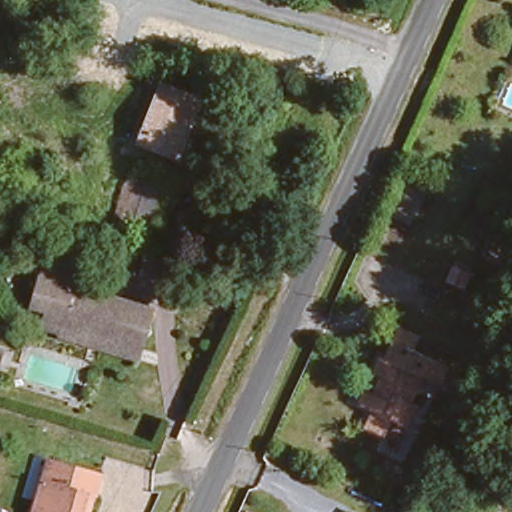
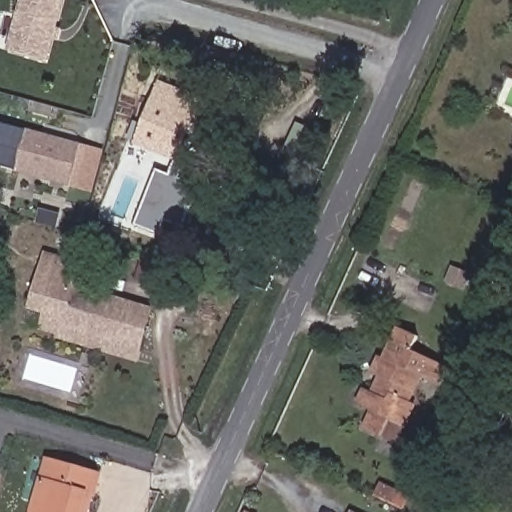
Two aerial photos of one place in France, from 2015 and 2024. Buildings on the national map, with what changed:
new [(49,62),(7,50),(21,0),(66,0),(49,62)]
unchanged [(176,156),(137,145),(152,87),(192,98),(176,156)]
new [(0,165),(0,122),(27,129),(16,170),(0,165)]
new [(16,172),(27,129),(82,144),(71,187),(16,172)]
unchanged [(115,171),(156,184),(145,231),(100,216),(115,171)]
unchanged [(53,275),(73,280),(72,286),(147,309),(137,347),(103,339),(107,323),(89,319),(85,332),(59,325),(61,318),(42,313),(53,275)]
unchanged [(133,359),(52,335),(55,328),(39,324),(42,313),(61,318),(59,325),(85,332),(89,319),(107,323),(103,339),(137,347),(133,359)]
unchanged [(412,345),(442,357),(433,376),(416,369),(409,385),(389,376),(386,384),(407,393),(397,417),(382,411),(375,430),(359,423),(367,404),(355,398),(362,381),(371,385),(377,371),(370,367),(377,351),(385,355),(401,323),(417,330),(412,345)]
unchanged [(95,472),(90,493),(85,512),(25,512),(38,458),(95,472)]

